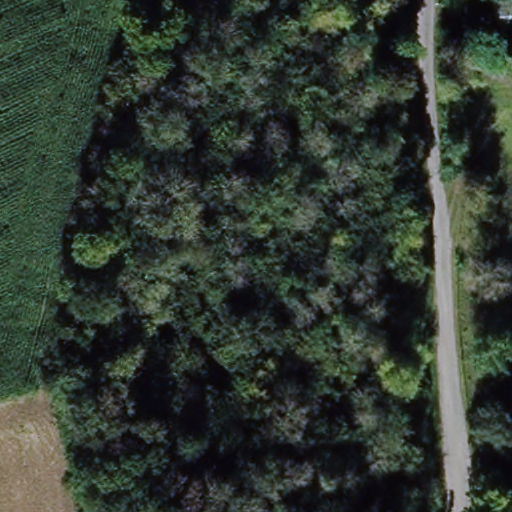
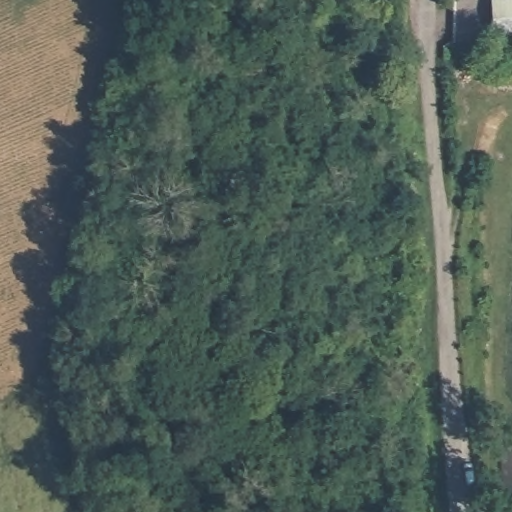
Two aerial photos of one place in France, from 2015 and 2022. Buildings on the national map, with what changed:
unchanged [(512,36),(490,37),(492,0),(512,0),(512,36)]
unchanged [(512,447),(512,455),(511,446),(512,447)]

